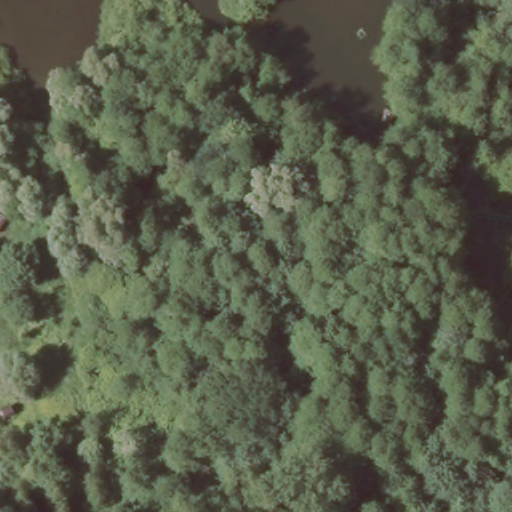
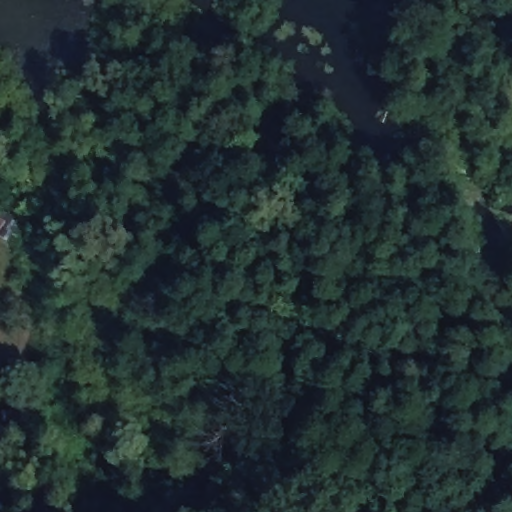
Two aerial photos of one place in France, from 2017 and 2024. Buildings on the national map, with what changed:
unchanged [(0,446),(0,424),(2,423),(10,442),(0,446)]

